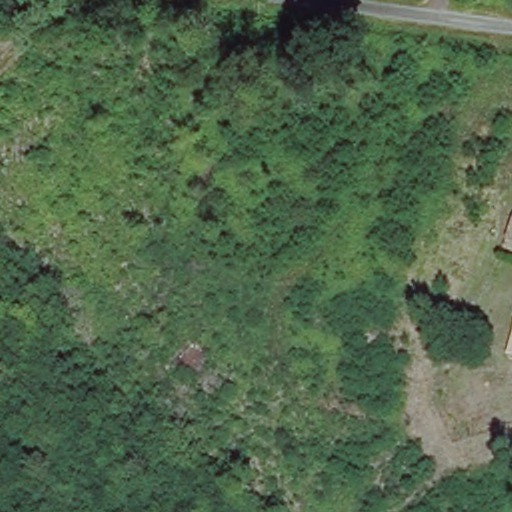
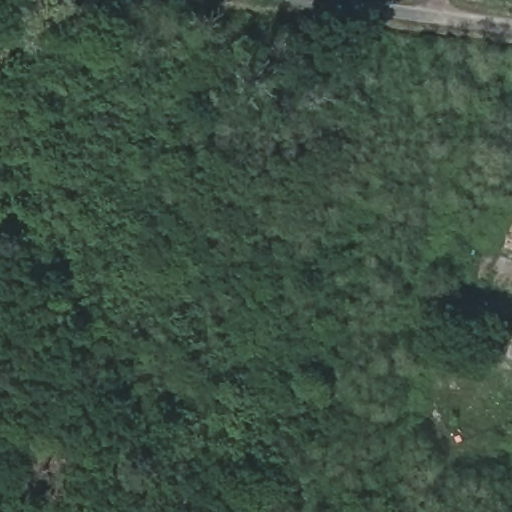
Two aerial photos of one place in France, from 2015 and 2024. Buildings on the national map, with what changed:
unchanged [(512,251),(501,247),(512,218),(512,251)]
unchanged [(512,345),(512,356),(509,355),(512,345)]

